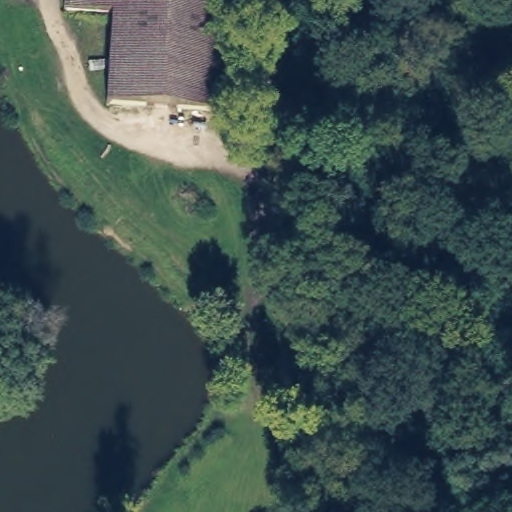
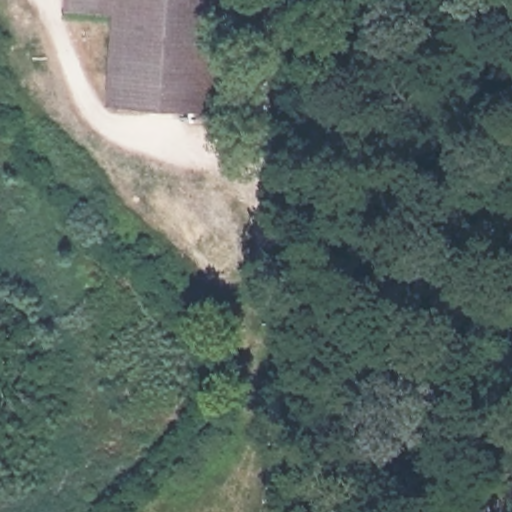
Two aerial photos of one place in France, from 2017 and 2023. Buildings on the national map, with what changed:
unchanged [(108,96),(113,6),(66,3),(67,0),(223,0),(216,103),(108,96)]

